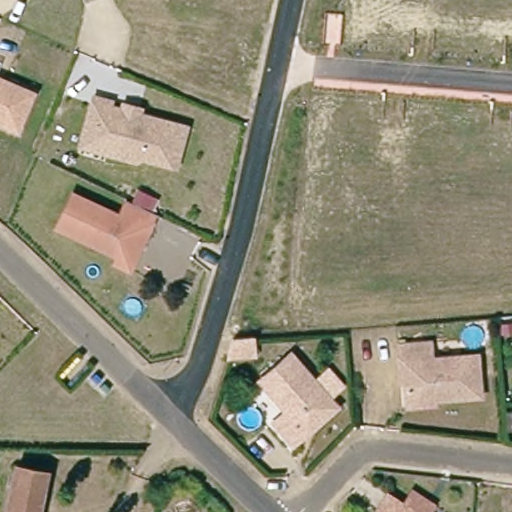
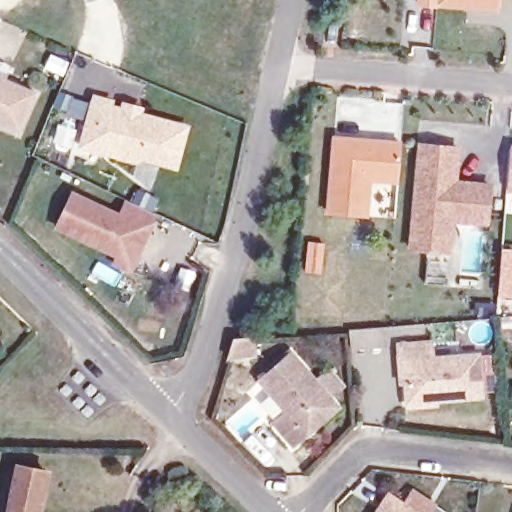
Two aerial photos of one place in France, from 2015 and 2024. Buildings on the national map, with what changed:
new [(499,4),(453,0),(500,0),(499,4)]
unchanged [(0,80),(2,76),(33,88),(16,128),(0,122),(0,80)]
unchanged [(176,169),(142,159),(136,162),(108,155),(81,148),(84,137),(94,98),(110,103),(109,108),(123,112),(124,106),(139,110),(139,115),(187,128),(176,169)]
new [(345,134),(364,136),(394,138),(392,176),(363,174),(359,210),(322,206),(328,133),(345,134)]
new [(445,215),(442,247),(404,243),(414,140),(452,144),(450,165),(449,178),(484,181),(481,209),(480,219),(445,215)]
new [(512,146),(512,192),(507,191),(511,145),(512,146)]
unchanged [(118,253),(57,225),(72,192),(119,214),(126,199),(127,197),(156,211),(155,212),(149,228),(141,225),(130,249),(136,251),(130,266),(115,260),(118,253)]
new [(386,335),(387,351),(356,355),(354,339),(386,335)]
unchanged [(433,356),(478,350),(483,391),(410,399),(406,364),(399,357),(398,342),(431,338),(433,356)]
unchanged [(235,369),(239,352),(257,350),(258,368),(235,369)]
unchanged [(339,406),(295,446),(274,425),(287,411),(259,382),(289,354),(339,406)]
unchanged [(7,512),(16,462),(46,467),(38,512),(7,512)]
unchanged [(406,512),(375,512),(384,499),(406,512)]

